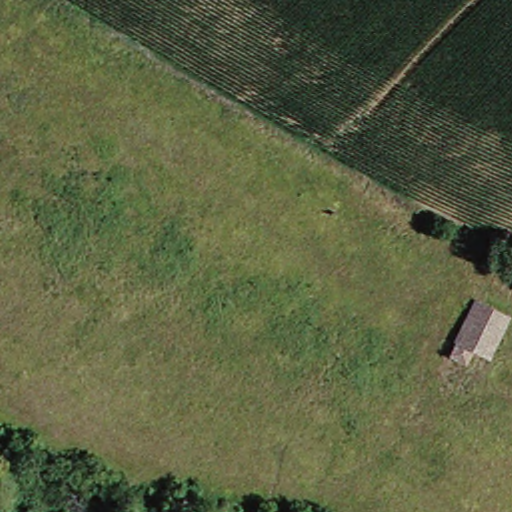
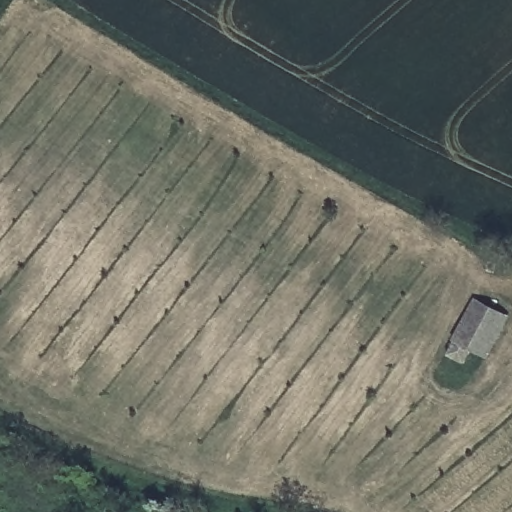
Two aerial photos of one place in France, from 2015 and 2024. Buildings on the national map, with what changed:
unchanged [(468,349),(457,366),(441,355),(473,304),(498,317),(478,354),(468,349)]

